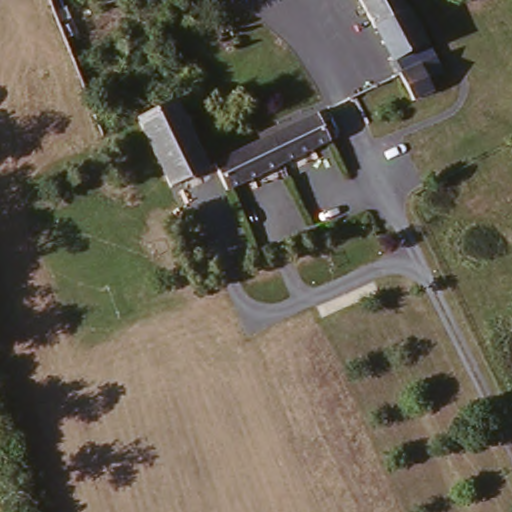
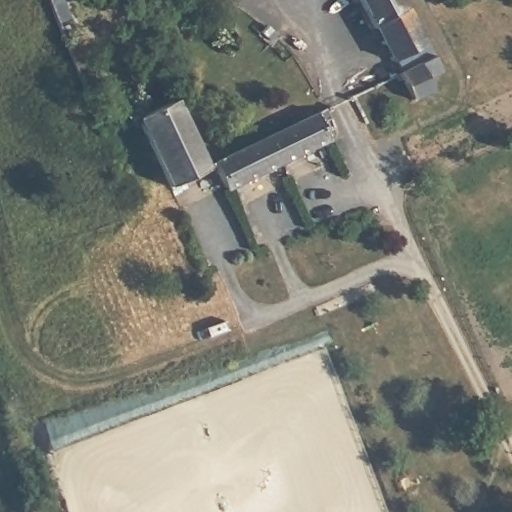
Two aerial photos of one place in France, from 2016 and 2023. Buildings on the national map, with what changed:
unchanged [(409,15),(412,14),(429,51),(386,73),(351,0),(401,0),(409,15)]
unchanged [(446,87),(431,94),(436,109),(411,120),(393,84),(434,62),(446,87)]
unchanged [(203,165),(164,184),(130,117),(166,98),(203,165)]
unchanged [(222,193),(207,164),(319,109),(328,126),(321,129),(326,139),(222,193)]

